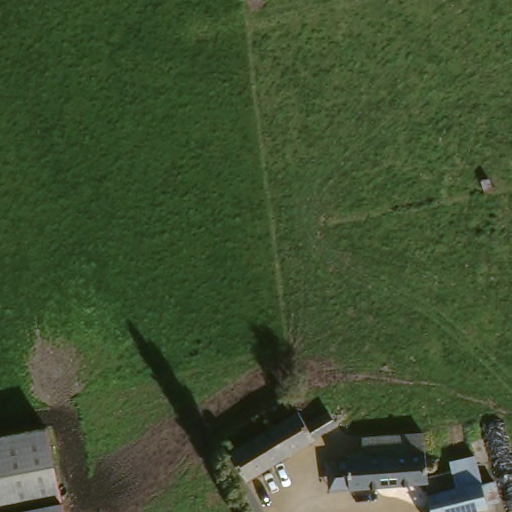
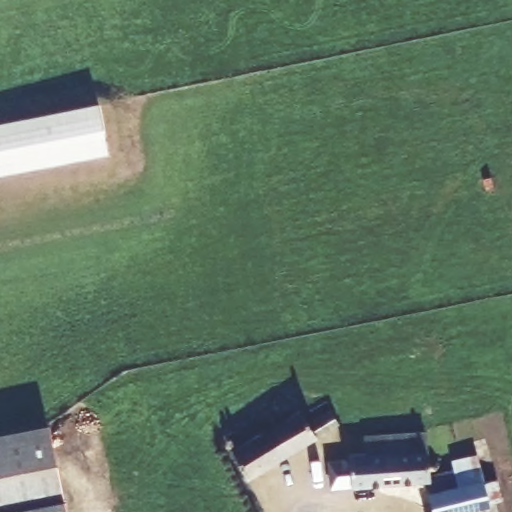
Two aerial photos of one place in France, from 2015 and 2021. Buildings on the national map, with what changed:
new [(108,154),(0,175),(0,128),(99,109),(108,154)]
unchanged [(236,448),(281,426),(304,415),(306,416),(311,423),(331,411),(341,429),(334,432),(326,438),(322,440),(251,480),(236,448)]
unchanged [(71,512),(0,512),(0,433),(54,421),(71,512)]
unchanged [(453,465),(477,458),(484,481),(490,503),(460,512),(423,512),(423,510),(436,505),(433,495),(435,494),(431,478),(358,482),(356,457),(369,456),(400,455),(432,452),(434,460),(444,460),(444,473),(454,472),(453,465)]

